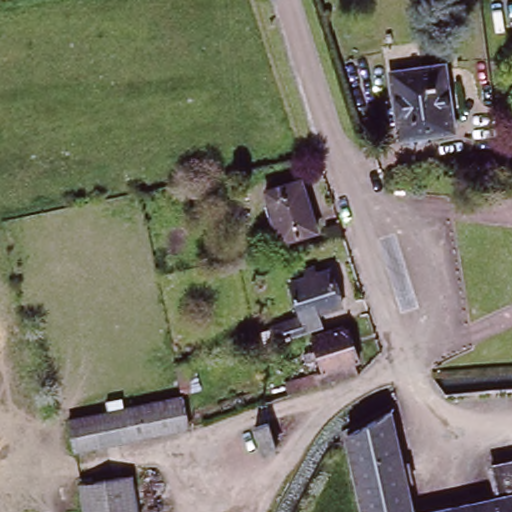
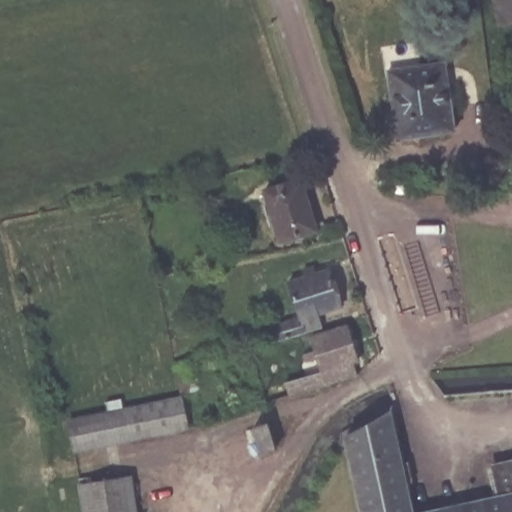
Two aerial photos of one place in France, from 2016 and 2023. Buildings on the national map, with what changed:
unchanged [(401,133),(392,69),(445,61),(455,125),(401,133)]
unchanged [(281,241),(265,187),(305,178),(320,231),(281,241)]
unchanged [(345,304),(320,311),(325,325),(277,340),(271,322),(301,313),(290,278),(332,265),(345,304)]
unchanged [(362,372),(275,396),(271,381),(325,365),(317,334),(350,323),(360,354),(357,355),(361,370),(362,372)]
unchanged [(75,449),(70,418),(185,399),(192,429),(75,449)]
unchanged [(262,452),(255,416),(272,412),(278,448),(262,452)]
unchanged [(391,416),(412,512),(364,512),(347,438),(391,416)]
unchanged [(487,466),(512,461),(512,512),(426,512),(492,496),(487,466)]
unchanged [(135,475),(142,512),(86,512),(82,485),(135,475)]

